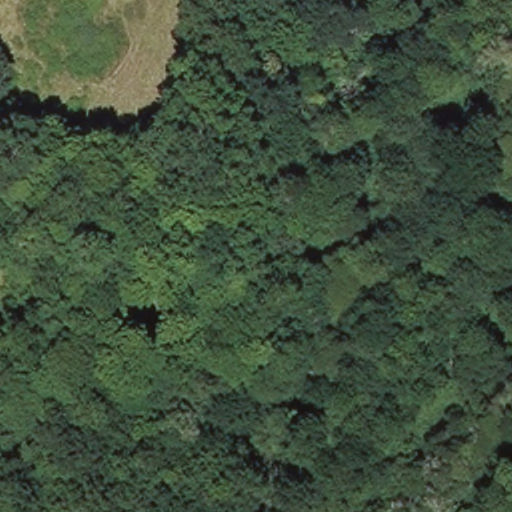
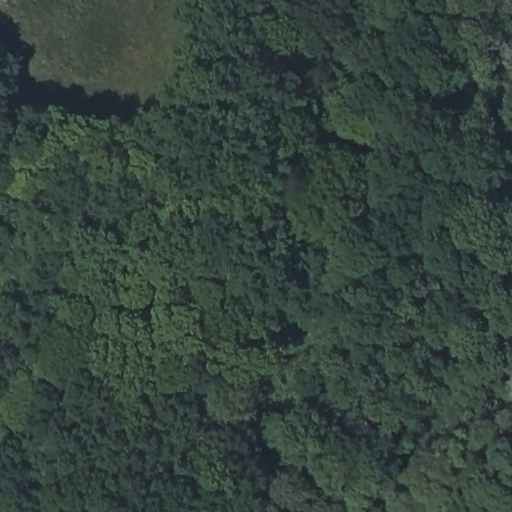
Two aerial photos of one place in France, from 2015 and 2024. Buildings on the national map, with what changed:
[]

